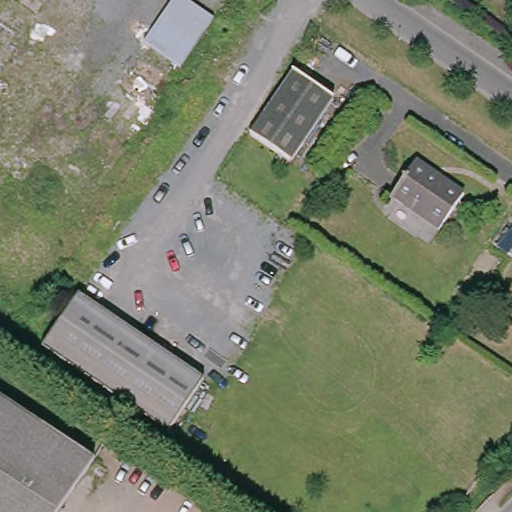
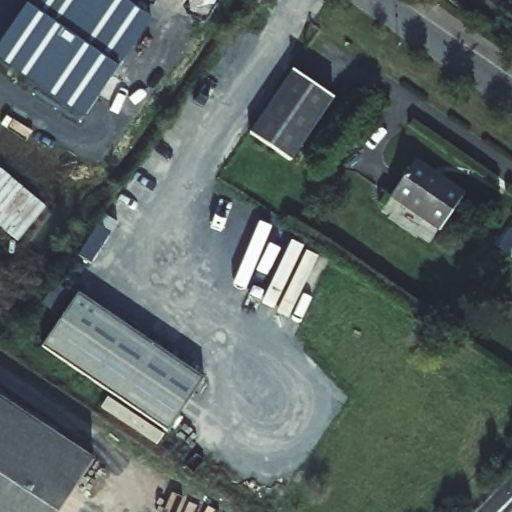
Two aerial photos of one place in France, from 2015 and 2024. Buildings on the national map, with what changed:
new [(30,0),(119,0),(150,21),(82,119),(0,61),(0,43),(30,0)]
unchanged [(179,65),(144,40),(171,0),(191,0),(213,16),(179,65)]
demolished [(136,53),(165,72),(135,117),(106,97),(136,53)]
unchanged [(332,102),(289,166),(250,139),(292,75),(332,102)]
new [(0,227),(0,168),(47,207),(17,241),(0,227)]
unchanged [(462,201),(437,236),(390,203),(415,169),(462,201)]
unchanged [(42,349),(79,296),(205,381),(169,435),(42,349)]
unchanged [(98,462),(65,512),(0,512),(0,397),(98,462)]

